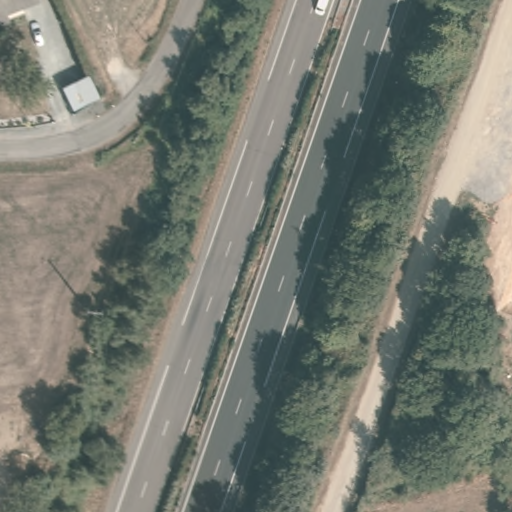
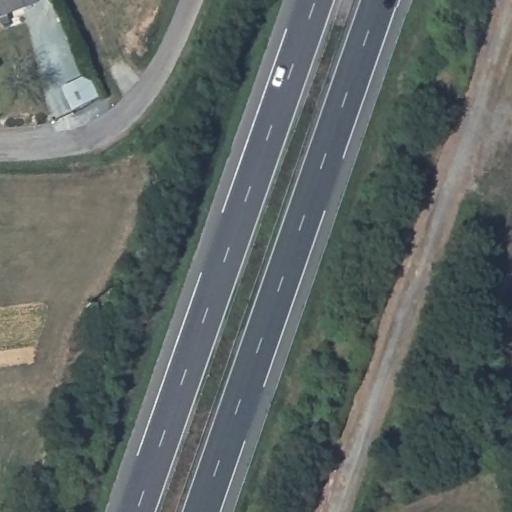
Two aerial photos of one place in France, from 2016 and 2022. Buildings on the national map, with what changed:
unchanged [(0,19),(0,0),(39,0),(40,4),(0,19)]

